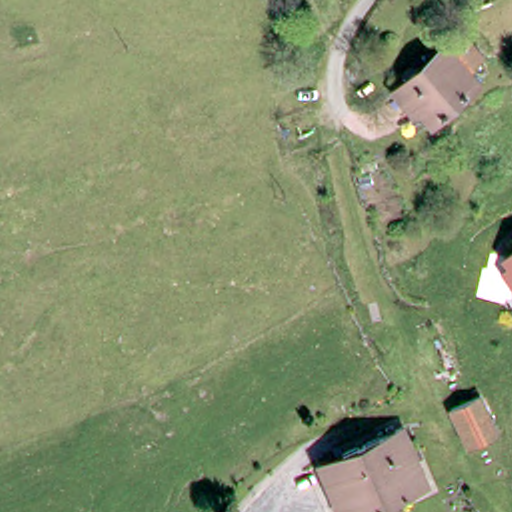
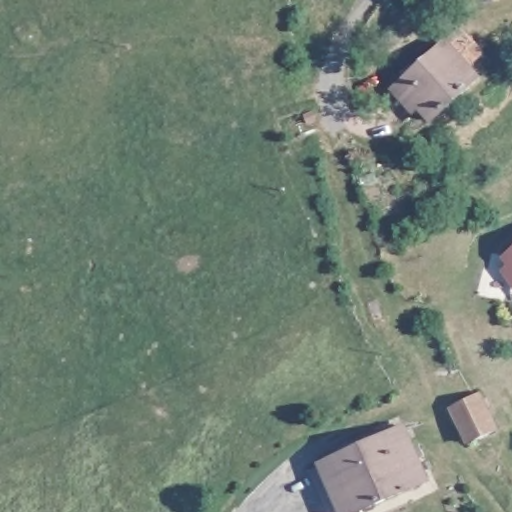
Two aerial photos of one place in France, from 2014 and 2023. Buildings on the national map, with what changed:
unchanged [(485,60),(467,73),(479,86),(435,128),(400,89),(464,34),(485,60)]
unchanged [(358,61),(379,52),(383,67),(360,71),(358,61)]
unchanged [(510,271),(504,264),(512,257),(512,288),(503,277),(510,271)]
unchanged [(470,454),(452,419),(471,409),(481,403),(499,438),(486,446),(470,454)]
unchanged [(322,472),(388,441),(385,434),(392,430),(397,437),(404,434),(415,456),(430,487),(378,512),(340,512),(322,472)]

